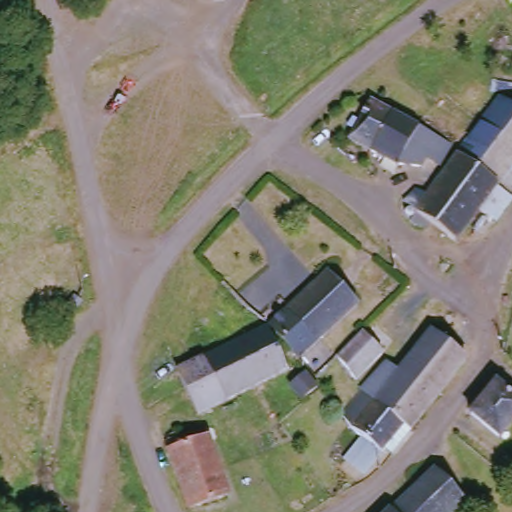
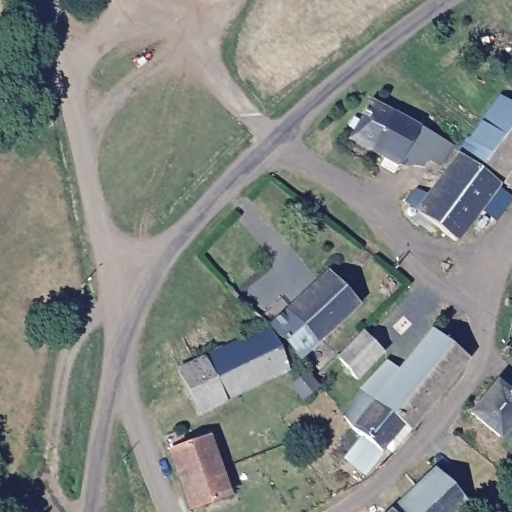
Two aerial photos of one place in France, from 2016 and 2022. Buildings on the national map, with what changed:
unchanged [(510,69),(512,66),(512,70),(510,69)]
unchanged [(433,154),(427,165),(402,165),(396,175),(384,169),(388,161),(350,141),(356,130),(347,126),(353,115),(363,120),(372,103),(453,147),(446,160),(433,154)]
unchanged [(501,104),(512,111),(512,186),(463,155),(501,104)]
unchanged [(422,216),(408,207),(417,194),(430,199),(460,158),(501,189),(498,193),(512,202),(512,205),(492,229),(477,220),(458,244),(437,225),(432,232),(418,222),(422,216)]
unchanged [(333,269),(362,305),(308,357),(276,326),(333,269)]
unchanged [(304,362),(291,369),(292,373),(205,413),(186,373),(280,333),(290,353),(298,350),(304,362)]
unchanged [(403,444),(397,439),(369,473),(352,459),(368,441),(345,419),(366,398),(362,394),(389,364),(400,374),(435,333),(469,362),(430,414),(403,444)]
unchanged [(359,380),(342,360),(367,335),(386,354),(359,380)]
unchanged [(327,387),(311,398),(298,382),(315,369),(327,387)]
unchanged [(502,436),(474,414),(500,383),(512,393),(512,423),(502,436)]
unchanged [(232,496),(193,512),(172,454),(211,439),(232,496)]
unchanged [(437,473),(464,500),(453,512),(397,512),(437,473)]

